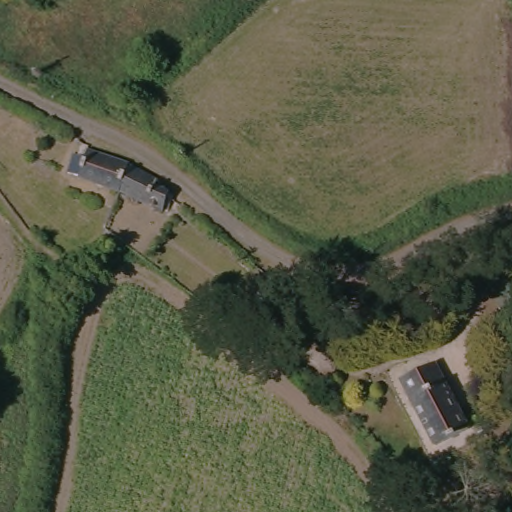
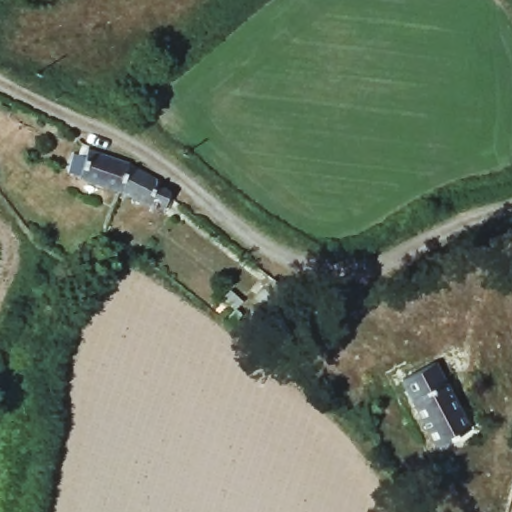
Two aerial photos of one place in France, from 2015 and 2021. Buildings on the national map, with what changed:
unchanged [(72,178),(76,158),(88,160),(90,149),(133,161),(124,189),(72,178)]
unchanged [(173,176),(171,184),(181,190),(176,202),(179,203),(176,209),(124,189),(133,161),(173,176)]
unchanged [(228,268),(222,264),(241,241),(253,249),(224,290),(216,283),(228,268)]
unchanged [(432,368),(473,427),(445,445),(404,387),(432,368)]

